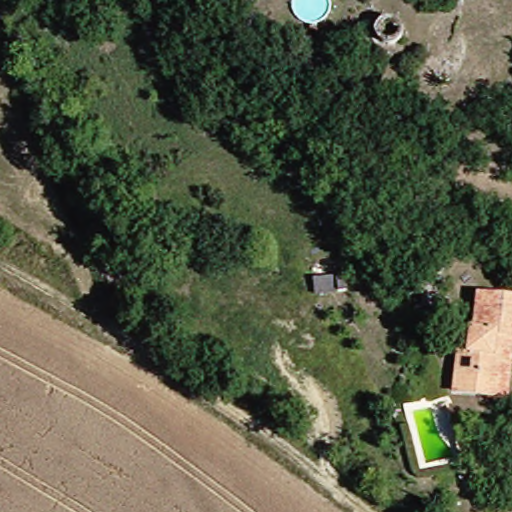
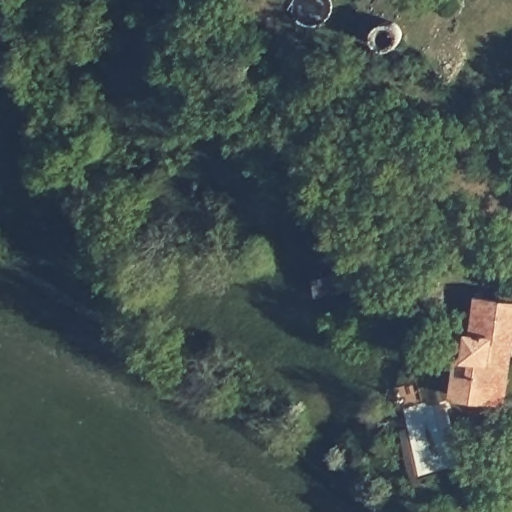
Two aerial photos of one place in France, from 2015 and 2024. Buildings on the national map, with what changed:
unchanged [(456,389),(469,330),(478,331),(488,291),(512,297),(512,332),(508,332),(492,394),(489,399),(456,389)]
unchanged [(489,399),(492,394),(508,332),(512,332),(512,382),(507,405),(489,399)]

